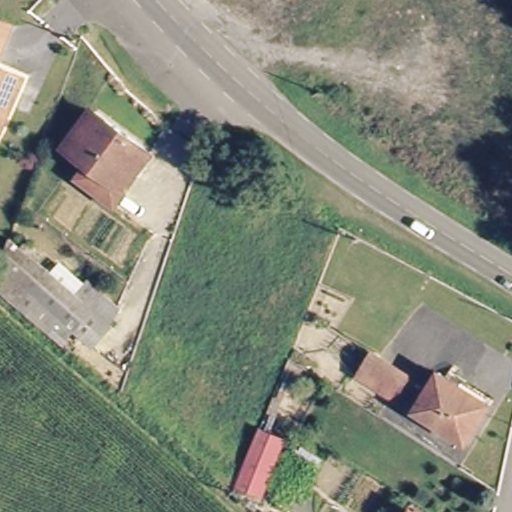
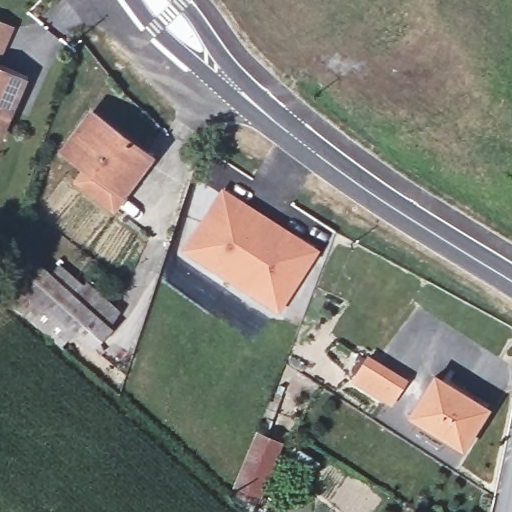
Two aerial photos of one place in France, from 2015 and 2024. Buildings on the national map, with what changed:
unchanged [(0,65),(0,27),(17,35),(0,65)]
unchanged [(0,73),(25,85),(11,108),(0,129),(0,73)]
unchanged [(80,186),(91,163),(71,152),(88,121),(146,149),(118,203),(80,186)]
new [(319,250),(279,315),(180,251),(223,187),(319,250)]
unchanged [(119,332),(99,356),(78,343),(68,356),(0,303),(0,296),(19,255),(119,332)]
unchanged [(405,388),(392,406),(357,383),(371,368),(405,388)]
unchanged [(411,410),(435,375),(487,408),(463,445),(411,410)]
unchanged [(276,448),(257,499),(234,490),(257,439),(276,448)]

